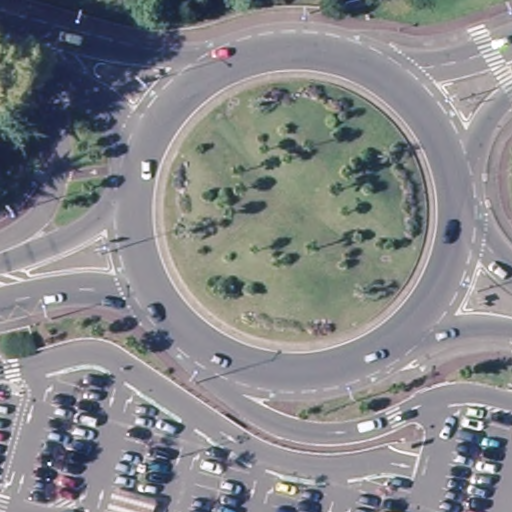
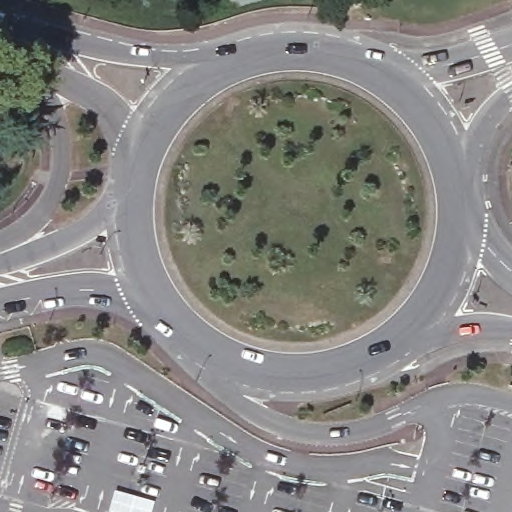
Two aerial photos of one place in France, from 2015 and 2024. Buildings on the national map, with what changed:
[]

